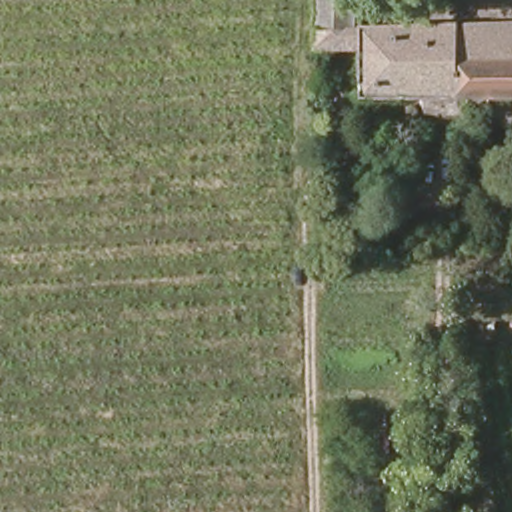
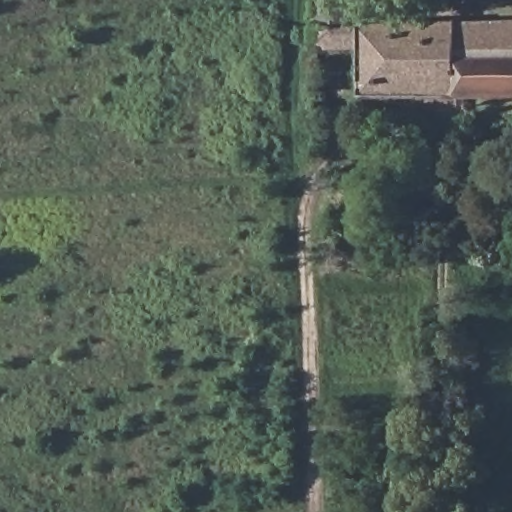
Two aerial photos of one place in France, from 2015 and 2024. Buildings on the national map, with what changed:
unchanged [(362,24),(466,20),(466,94),(466,96),(369,96),(367,47),(321,47),(324,0),(363,0),(362,24)]
unchanged [(512,19),(512,93),(466,94),(466,20),(512,19)]

